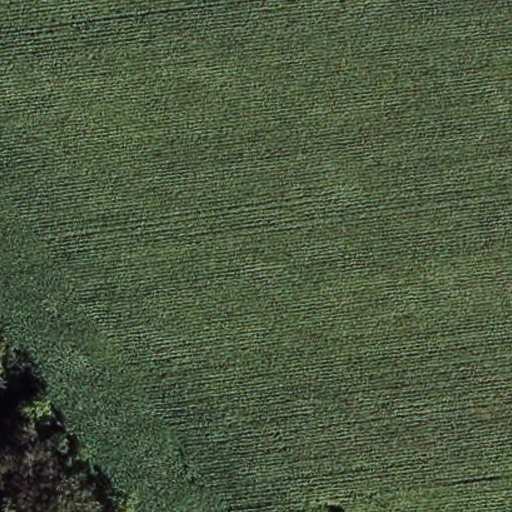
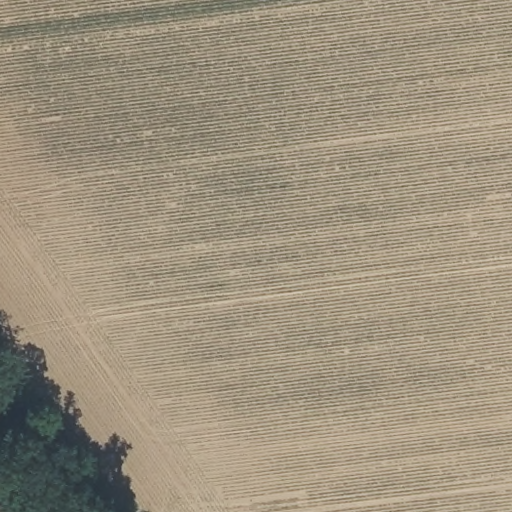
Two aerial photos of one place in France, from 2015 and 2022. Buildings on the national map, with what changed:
unchanged [(30,512),(0,512),(0,442),(30,512)]

